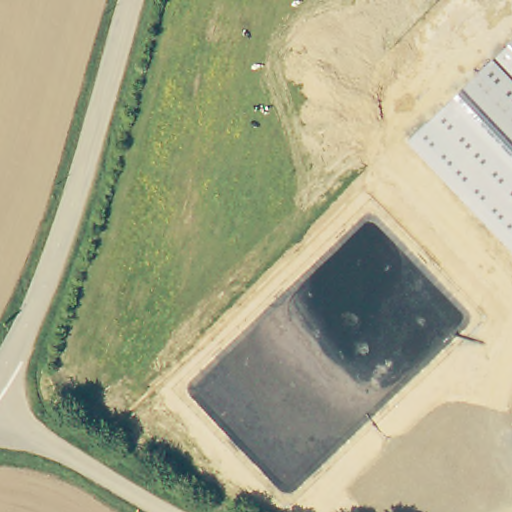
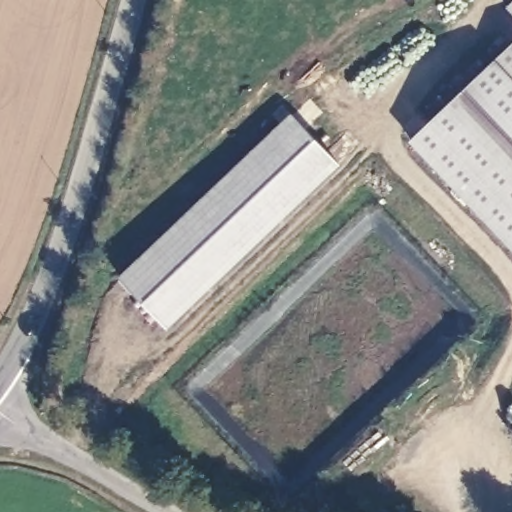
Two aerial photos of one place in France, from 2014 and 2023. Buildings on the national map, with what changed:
new [(506,6),(512,0),(512,13),(506,6)]
unchanged [(408,140),(512,43),(512,251),(408,140)]
new [(166,328),(117,277),(290,113),(340,164),(166,328)]

